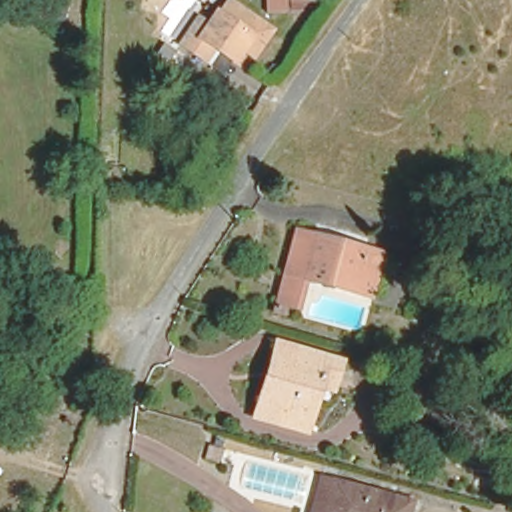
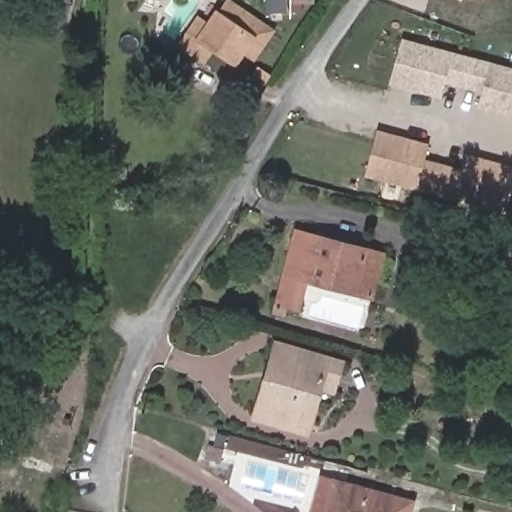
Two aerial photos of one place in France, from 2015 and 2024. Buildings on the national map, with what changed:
unchanged [(228,50),(197,31),(204,16),(214,0),(241,0),(268,17),(258,32),(250,45),(237,37),(228,50)]
new [(459,0),(461,0),(460,1),(459,0)]
unchanged [(197,31),(228,50),(219,66),(176,40),(195,10),(204,16),(197,31)]
new [(403,38),(471,56),(471,57),(464,82),(448,79),(443,95),(392,80),(403,38)]
new [(512,68),(512,113),(476,103),(480,87),(464,82),(471,57),(512,68)]
new [(379,130),(431,144),(427,160),(443,165),(436,190),(368,172),(379,130)]
new [(459,169),(463,152),(512,165),(512,176),(504,209),(436,190),(443,165),(459,169)]
unchanged [(376,245),(365,286),(303,268),(294,299),(272,291),(293,223),(376,245)]
unchanged [(264,365),(269,343),(334,361),(329,380),(319,380),(307,424),(265,414),(252,410),(264,365)]
new [(512,364),(512,389),(504,386),(510,363),(512,364)]
new [(512,401),(512,418),(508,417),(512,401)]
unchanged [(401,495),(396,512),(316,512),(326,473),(401,495)]

